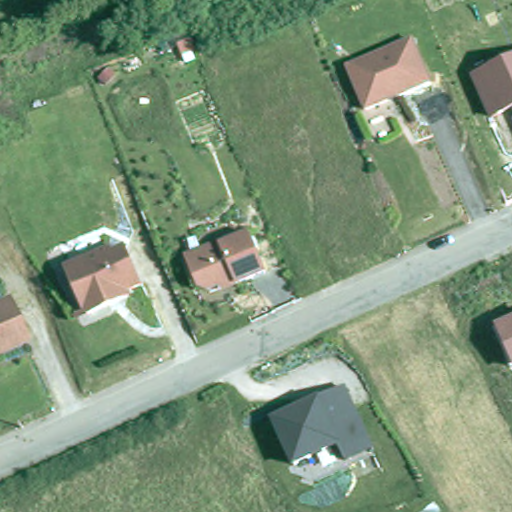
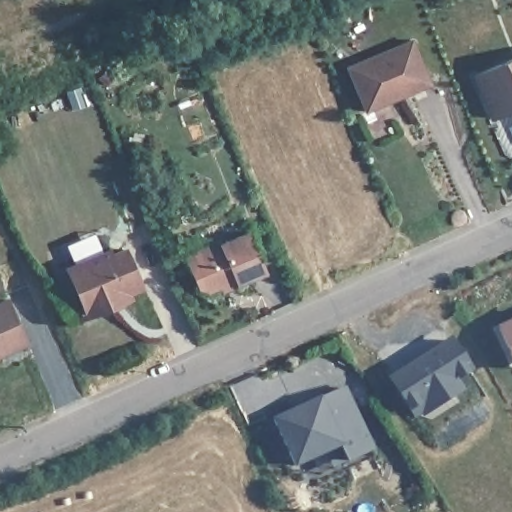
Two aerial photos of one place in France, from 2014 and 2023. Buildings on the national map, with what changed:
unchanged [(434,89),(367,115),(346,66),(416,40),(434,89)]
unchanged [(492,121),(473,76),(512,58),(512,113),(492,121)]
unchanged [(266,276),(239,286),(206,296),(188,255),(218,247),(251,236),(266,276)]
unchanged [(137,290),(105,304),(108,309),(87,318),(66,272),(104,254),(106,258),(119,252),(137,290)]
unchanged [(25,345),(0,358),(0,306),(6,303),(25,345)]
unchanged [(498,326),(512,320),(512,361),(498,326)]
new [(468,370),(452,379),(459,391),(435,405),(429,395),(408,408),(390,379),(413,364),(422,361),(434,353),(433,350),(449,340),(468,370)]
unchanged [(373,449),(348,461),(343,447),(295,466),(277,417),(318,401),(346,387),(373,449)]

